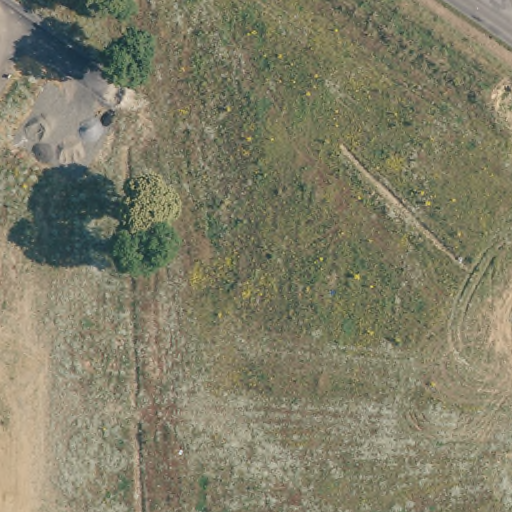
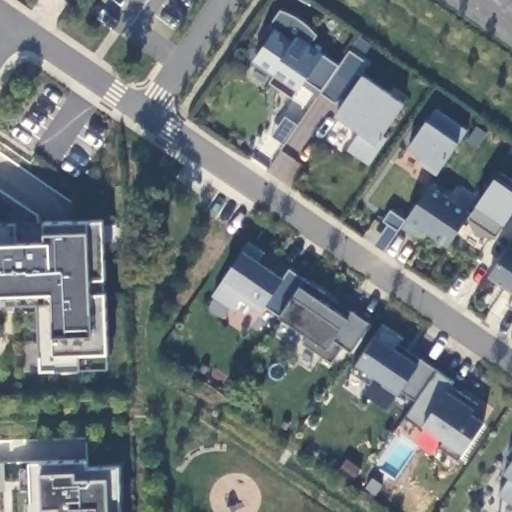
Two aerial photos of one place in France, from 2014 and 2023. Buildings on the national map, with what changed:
new [(348,150),(360,131),(335,115),(342,104),(337,100),(336,102),(321,91),(318,95),(303,85),(299,91),(297,90),(293,96),(270,81),(272,77),(253,65),(255,62),(253,60),(275,29),(270,26),(281,9),(293,14),(301,19),(310,25),(317,34),(312,44),(325,53),(324,55),(340,65),(350,49),(366,60),(359,71),(362,75),(363,74),(405,103),(383,136),(388,138),(370,165),(348,150)]
unchanged [(418,162),(422,157),(408,147),(427,120),(436,107),(468,129),(460,142),(441,170),(437,175),(418,162)]
new [(505,224),(497,236),(470,217),(448,247),(422,229),(416,237),(400,227),(385,250),(375,244),(388,224),(383,220),(391,209),(405,220),(406,219),(431,185),(472,212),(478,205),(496,177),(501,171),(512,179),(512,215),(505,224)]
new [(58,369),(57,367),(44,368),(43,355),(41,354),(40,302),(0,304),(0,223),(104,220),(106,277),(109,352),(109,367),(81,367),(58,369)]
new [(260,260),(284,278),(290,268),(305,278),(371,324),(351,351),(345,346),(332,362),(304,343),(311,336),(281,315),(266,304),(265,306),(261,312),(240,298),(234,310),(213,295),(224,279),(244,250),(249,240),(266,251),(260,260)]
new [(489,276),(511,245),(512,245),(512,292),(489,276)]
new [(510,305),(512,302),(512,307),(510,305)]
new [(403,339),(396,347),(420,363),(422,358),(455,381),(452,386),(479,405),(476,409),(472,413),(485,421),(463,453),(459,458),(440,446),(445,440),(425,426),(423,428),(406,417),(417,400),(402,389),(398,395),(383,385),(385,382),(375,376),(370,384),(353,372),(385,326),(403,339)]
new [(508,452),(512,447),(512,456),(508,452)]
new [(41,462),(88,460),(88,467),(120,467),(122,512),(28,512),(27,501),(34,501),(34,487),(22,488),(21,469),(32,469),(32,461),(41,461),(41,462)]
new [(505,473),(512,462),(512,477),(505,473)]
new [(500,494),(512,477),(512,503),(500,494)]

